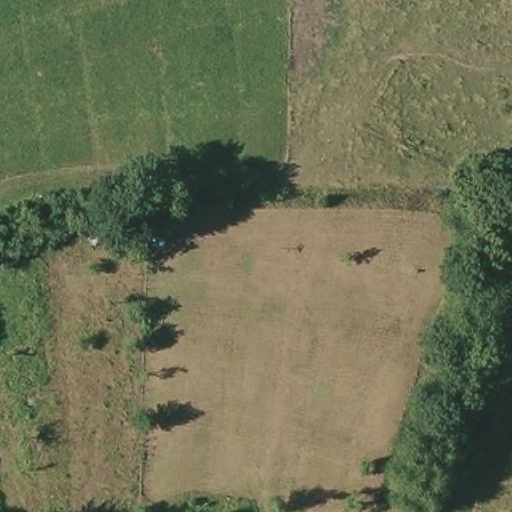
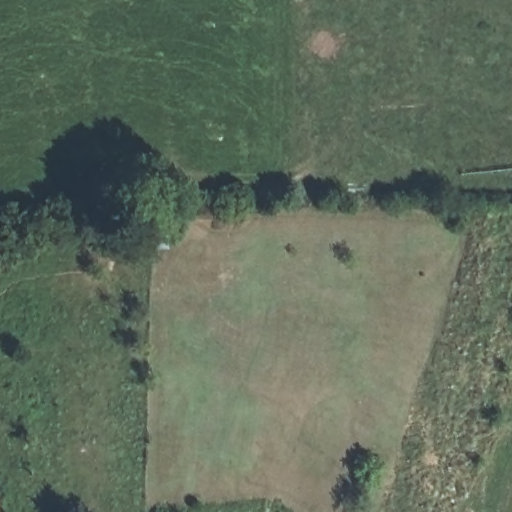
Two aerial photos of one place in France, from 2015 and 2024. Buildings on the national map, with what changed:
unchanged [(107,247),(95,249),(93,239),(105,237),(107,247)]

